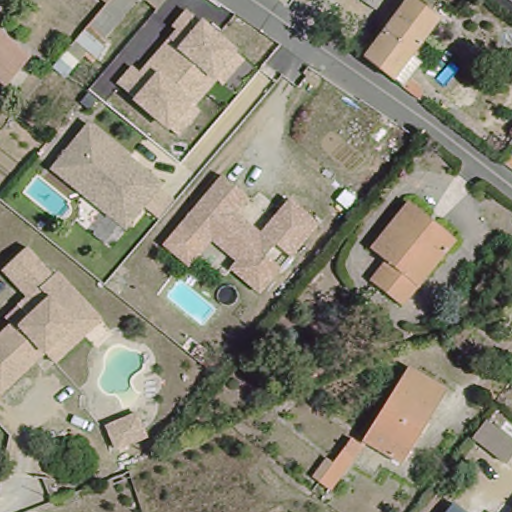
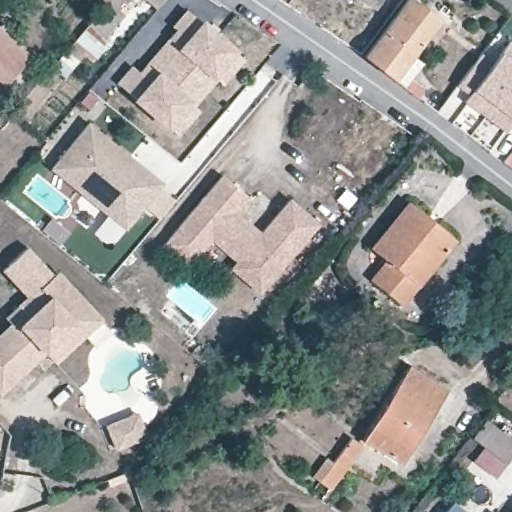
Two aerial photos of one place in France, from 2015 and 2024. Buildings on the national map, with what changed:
unchanged [(112,41),(103,61),(79,40),(110,4),(113,0),(142,0),(110,38),(112,41)]
unchanged [(113,0),(110,4),(106,0),(113,0)]
unchanged [(171,0),(162,11),(148,0),(171,0)]
unchanged [(362,0),(384,0),(376,11),(362,0)]
unchanged [(420,99),(396,80),(365,56),(408,0),(416,0),(442,18),(414,56),(424,64),(412,80),(423,88),(424,94),(420,99)]
unchanged [(133,65),(140,70),(175,32),(171,28),(187,11),(202,21),(235,51),(244,61),(222,88),(216,83),(195,106),(200,111),(178,138),(170,131),(136,101),(116,84),(133,65)]
unchanged [(0,79),(0,29),(33,55),(25,65),(7,85),(0,79)]
new [(494,64),(510,42),(512,43),(512,81),(485,116),(465,101),(470,95),(457,86),(481,54),(494,64)]
new [(512,128),(509,126),(505,132),(485,116),(512,81),(512,128)]
unchanged [(156,187),(119,232),(45,170),(83,125),(156,187)]
unchanged [(263,282),(253,294),(244,286),(234,279),(225,271),(230,264),(202,242),(197,250),(170,229),(212,178),(238,199),(225,214),(252,236),(254,233),(264,221),(265,219),(280,201),(310,225),(282,258),(267,245),(257,257),(269,266),(273,270),(263,282)]
unchanged [(367,247),(404,202),(452,241),(400,306),(367,281),(382,261),(367,247)]
unchanged [(0,389),(0,331),(7,325),(1,319),(15,307),(25,318),(45,299),(35,289),(25,298),(0,270),(0,268),(22,247),(49,276),(52,273),(75,299),(85,310),(95,321),(48,363),(39,353),(30,362),(0,389)]
unchanged [(369,440),(415,366),(454,391),(407,463),(369,440)]
unchanged [(141,412),(152,438),(123,448),(112,424),(141,412)]
unchanged [(512,440),(512,457),(507,463),(475,439),(488,422),(512,440)]
unchanged [(357,438),(369,446),(335,490),(325,482),(317,476),(332,458),(339,463),(357,438)]
unchanged [(454,503),(466,512),(448,512),(454,503)]
unchanged [(512,510),(512,512),(510,512),(512,510)]

